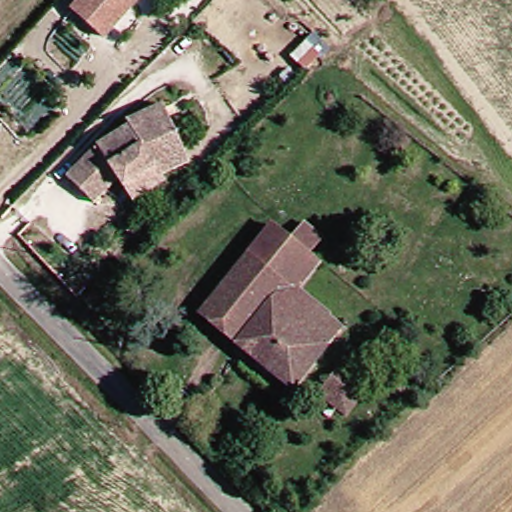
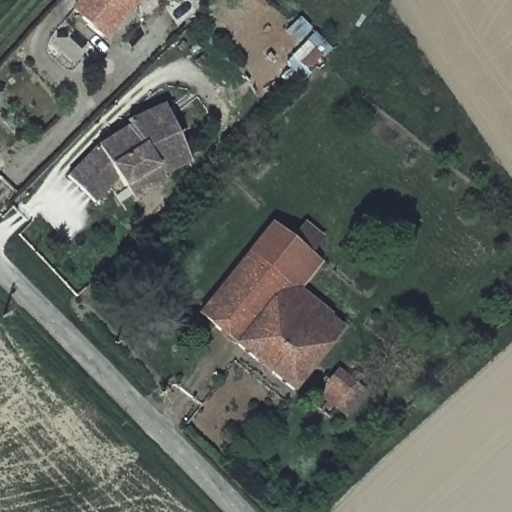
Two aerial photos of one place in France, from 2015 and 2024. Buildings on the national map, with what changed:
unchanged [(68,16),(81,0),(133,0),(98,40),(68,16)]
unchanged [(132,199),(125,186),(120,176),(93,205),(64,180),(94,147),(125,127),(124,124),(157,105),(164,117),(188,159),(163,175),(166,182),(132,199)]
unchanged [(277,235),(286,219),(302,231),(292,248),(307,258),(284,290),(239,255),(259,223),(277,235)]
unchanged [(284,290),(332,328),(291,390),(196,321),(239,255),(284,290)]
unchanged [(319,396),(333,370),(366,390),(348,415),(319,396)]

